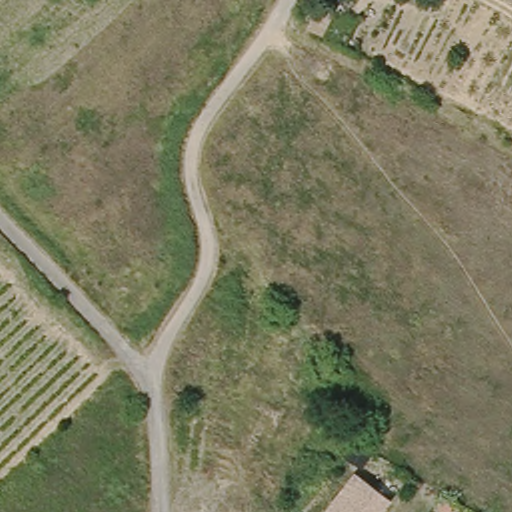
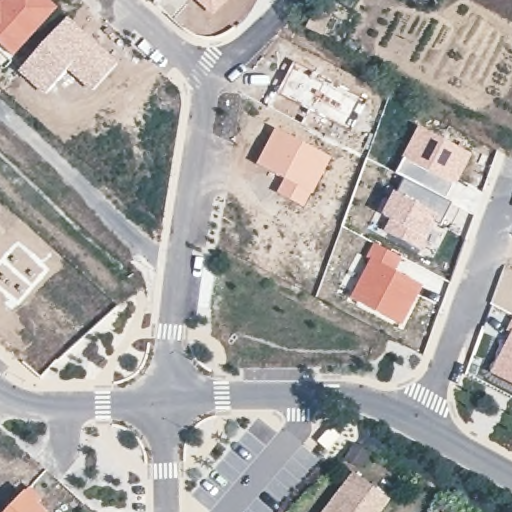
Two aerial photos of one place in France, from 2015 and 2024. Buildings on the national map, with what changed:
new [(0,0),(1,0),(51,0),(57,6),(40,28),(11,58),(0,48),(0,0)]
new [(195,0),(226,0),(212,15),(195,0)]
unchanged [(324,23),(310,17),(318,0),(324,0),(333,5),(324,23)]
new [(67,17),(116,63),(91,91),(67,71),(44,94),(18,69),(67,17)]
new [(292,62),(358,97),(345,125),(301,106),(277,93),(292,62)]
new [(417,126),(472,154),(459,180),(448,202),(403,179),(395,174),(417,126)]
new [(274,128),(330,156),(303,207),(275,193),(282,179),(255,164),(274,128)]
new [(397,195),(404,179),(448,202),(453,204),(442,226),(437,223),(427,239),(429,240),(422,252),(385,233),(391,221),(382,216),(395,193),(397,195)]
new [(368,260),(365,258),(374,242),(403,258),(398,270),(424,286),(402,325),(350,297),(368,260)]
new [(50,273),(18,309),(0,292),(0,269),(20,246),(50,273)]
new [(508,329),(512,321),(512,384),(490,372),(511,331),(508,329)]
unchanged [(353,467),(390,490),(377,512),(326,512),(353,467)]
new [(30,489),(43,501),(40,506),(47,512),(7,512),(26,492),(30,489)]

